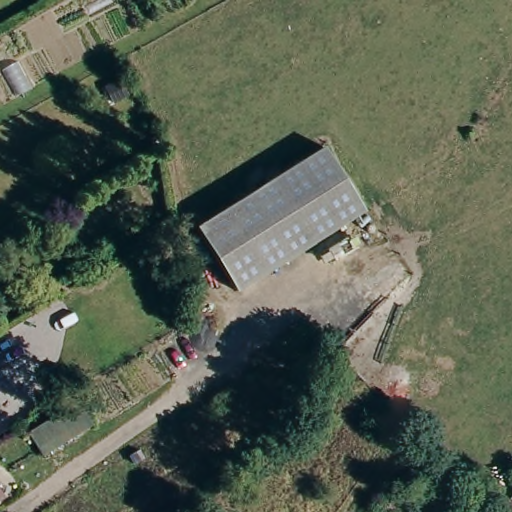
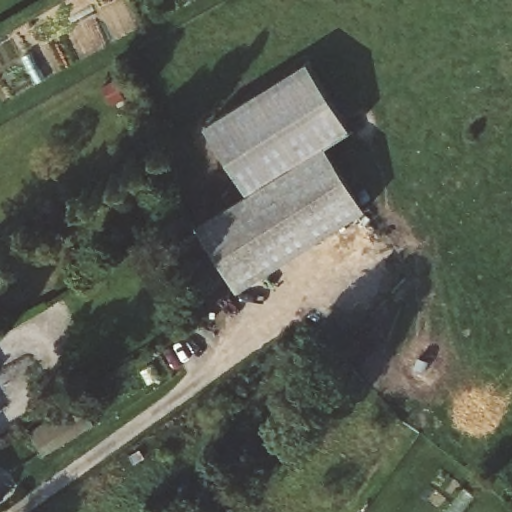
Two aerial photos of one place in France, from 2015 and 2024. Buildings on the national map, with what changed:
new [(307,59),(350,126),(247,189),(207,123),(307,59)]
unchanged [(237,292),(198,227),(326,148),(365,212),(274,270),(237,292)]
unchanged [(31,431),(53,417),(81,400),(96,427),(69,445),(48,458),(31,431)]
unchanged [(5,496),(0,499),(0,488),(5,496)]

